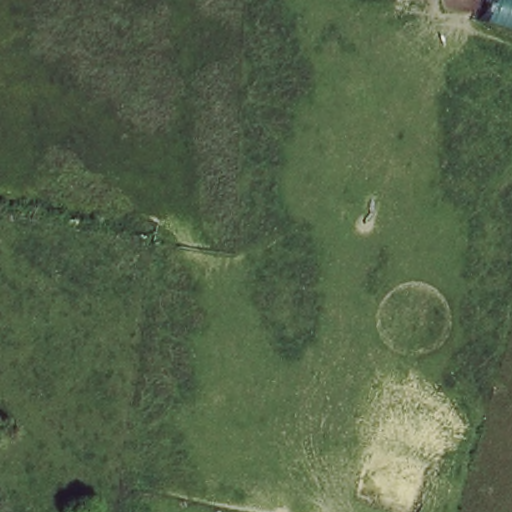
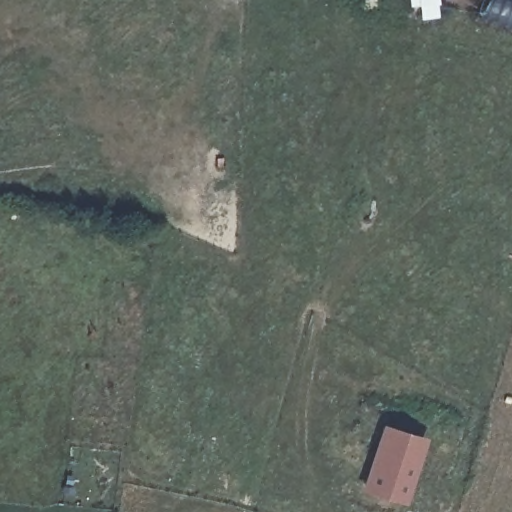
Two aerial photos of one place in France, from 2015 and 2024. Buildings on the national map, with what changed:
new [(389,425),(424,437),(406,493),(370,482),(389,425)]

